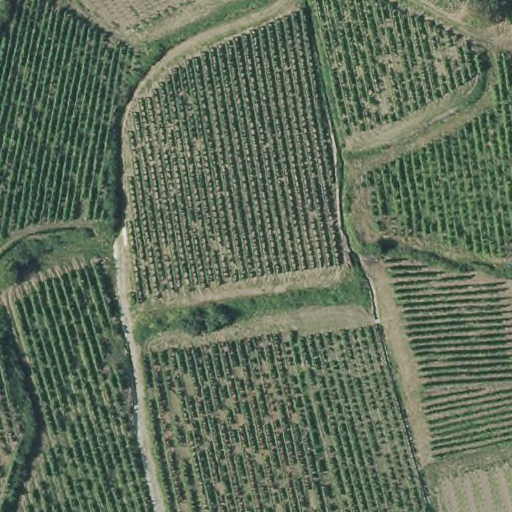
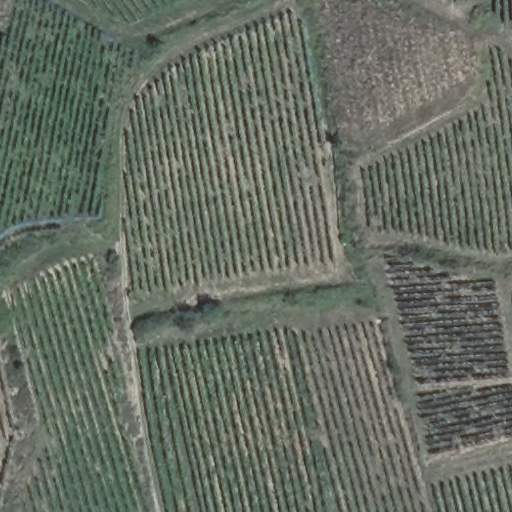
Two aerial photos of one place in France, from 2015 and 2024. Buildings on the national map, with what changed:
[]

